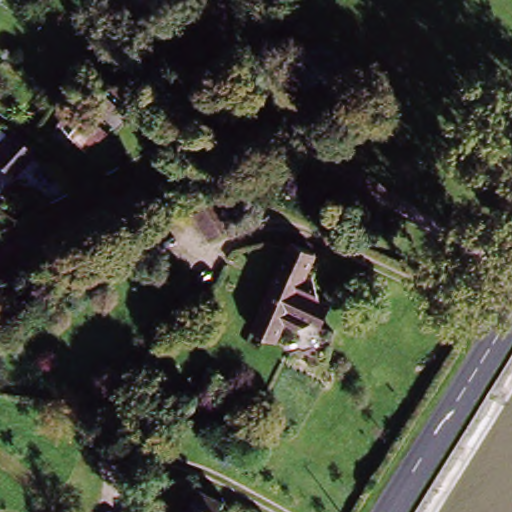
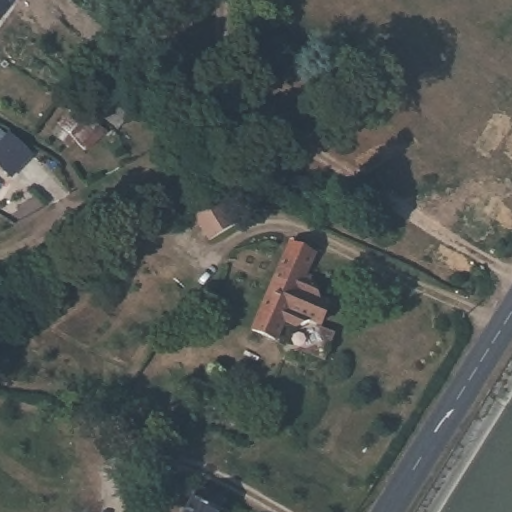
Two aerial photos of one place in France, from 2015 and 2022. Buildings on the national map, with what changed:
unchanged [(69,134),(80,121),(105,142),(93,155),(69,134)]
unchanged [(33,155),(12,177),(0,165),(0,146),(11,135),(33,155)]
unchanged [(231,229),(205,245),(188,219),(215,202),(231,229)]
unchanged [(248,330),(287,242),(311,253),(301,275),(307,277),(316,300),(325,303),(315,326),(306,322),(293,328),(280,323),(271,341),(248,330)]
unchanged [(300,353),(310,326),(315,327),(330,333),(320,361),(300,353)]
unchanged [(198,407),(206,392),(215,373),(241,388),(233,406),(224,421),(198,407)]
unchanged [(224,507),(221,512),(190,512),(198,495),(224,507)]

